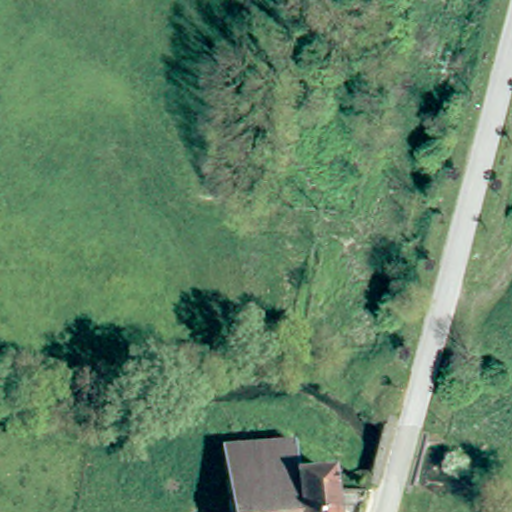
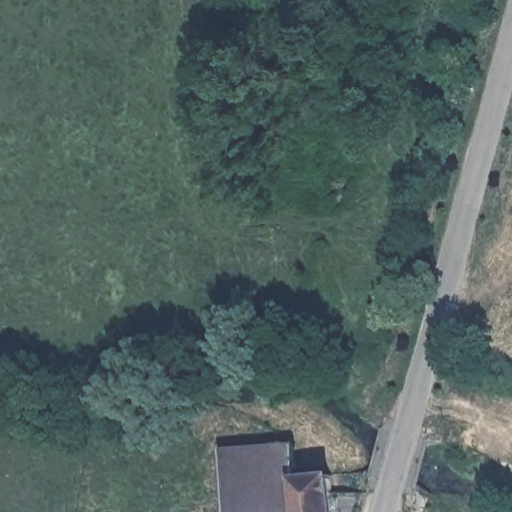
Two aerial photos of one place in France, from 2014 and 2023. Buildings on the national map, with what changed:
unchanged [(290,443),(294,464),(295,476),(330,472),(334,512),(228,512),(219,446),(290,443)]

